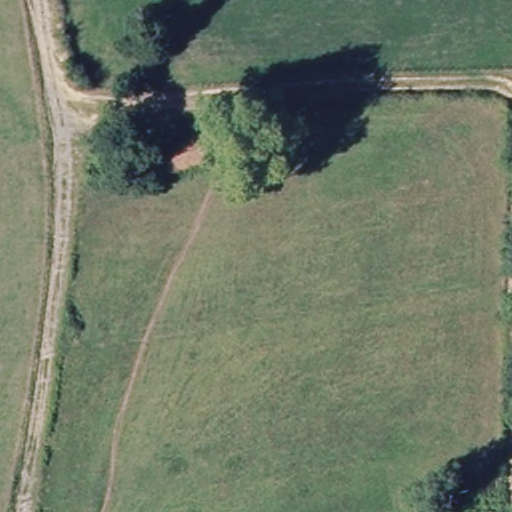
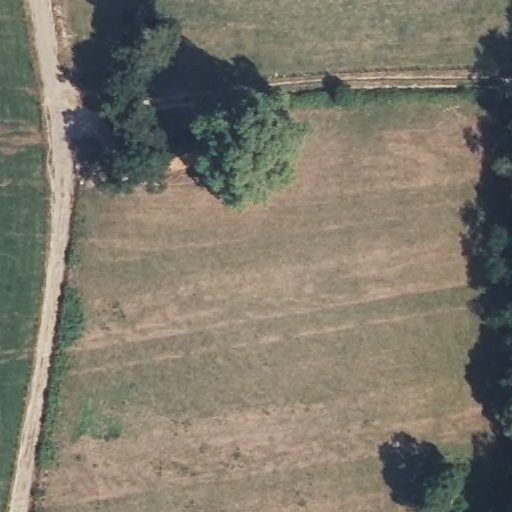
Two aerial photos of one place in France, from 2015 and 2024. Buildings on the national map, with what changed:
unchanged [(200,120),(204,149),(130,164),(125,136),(200,120)]

